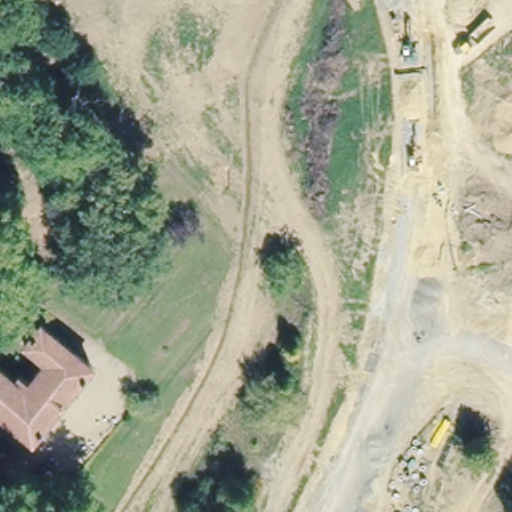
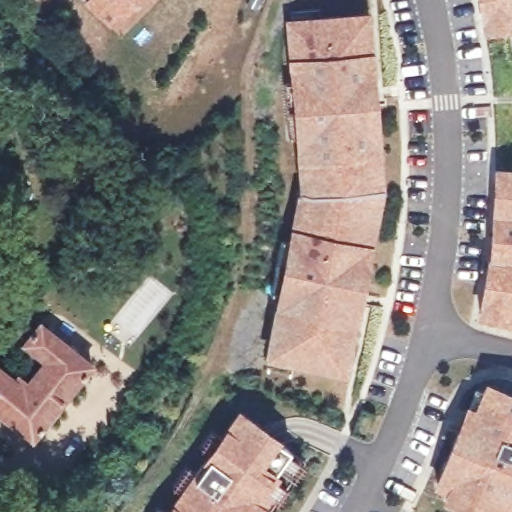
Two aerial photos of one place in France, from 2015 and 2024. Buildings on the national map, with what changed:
new [(85,3),(87,0),(140,0),(112,29),(85,3)]
new [(481,0),(512,0),(512,25),(486,30),(481,0)]
new [(269,358),(281,298),(272,296),(282,241),(292,244),(302,194),(304,194),(301,160),(299,139),(289,140),(284,85),(294,84),(289,23),(292,23),(292,13),(319,10),(320,20),(356,17),(366,16),(368,38),(372,82),(376,127),(381,188),(380,193),(372,232),(361,286),(357,308),(348,351),(344,373),(334,371),(292,362),(290,372),(267,368),(269,358)]
new [(495,215),(497,171),(512,172),(512,321),(480,316),(490,260),(494,215),(495,215)]
unchanged [(51,368),(30,351),(46,330),(96,370),(37,444),(0,415),(0,371),(19,387),(23,381),(34,390),(51,368)]
new [(494,512),(476,512),(447,500),(451,490),(438,485),(460,432),(468,412),(477,390),(485,394),(488,387),(512,397),(512,512),(505,512),(496,508),(494,512)]
new [(175,487),(164,481),(175,459),(186,465),(198,443),(187,437),(196,420),(207,426),(221,400),(275,429),(252,473),(258,476),(250,491),(238,512),(147,512),(152,503),(163,508),(175,487)]
new [(250,491),(258,476),(252,473),(275,429),(291,437),(260,496),(261,497),(253,512),(238,512),(250,491)]

